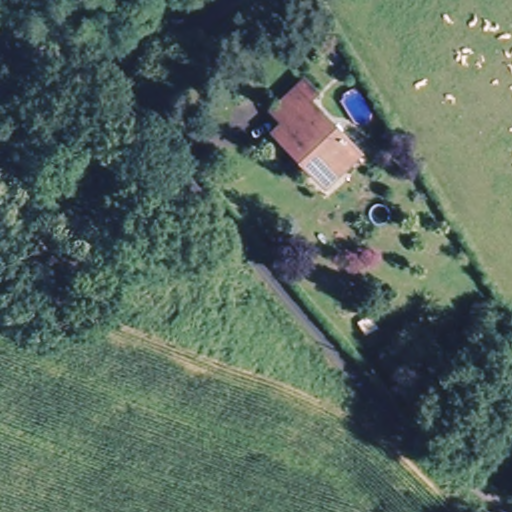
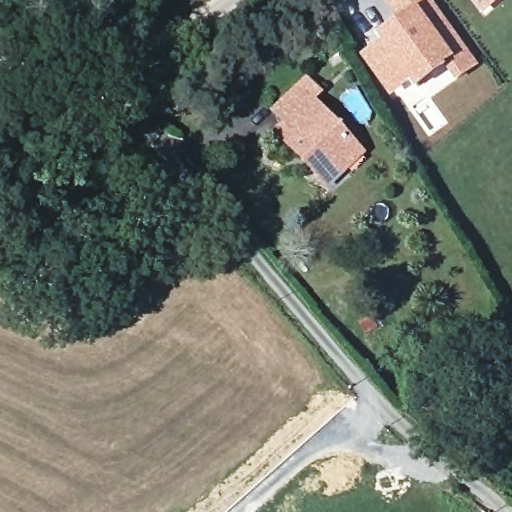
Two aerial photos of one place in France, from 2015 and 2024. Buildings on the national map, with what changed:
new [(479,65),(457,80),(447,66),(417,89),(412,82),(390,97),(361,56),(381,41),(378,35),(397,20),(383,0),(433,0),(479,65)]
new [(485,13),(474,0),(500,0),(485,13)]
unchanged [(350,167),(331,185),(280,134),(288,125),(277,114),(308,82),(321,95),(313,103),(359,149),(364,155),(350,167)]

